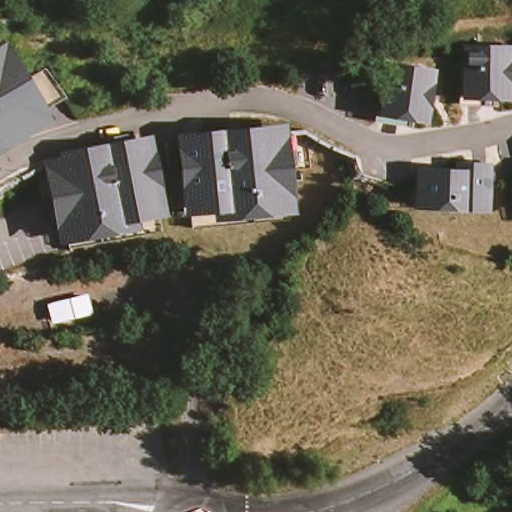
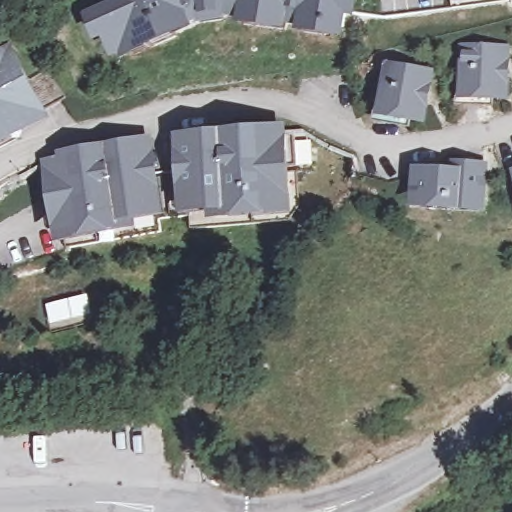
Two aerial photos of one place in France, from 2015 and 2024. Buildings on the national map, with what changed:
new [(349,17),(347,38),(300,34),(302,26),(290,26),(289,31),(240,26),(240,20),(230,18),(197,27),(125,60),(124,55),(114,58),(105,39),(97,43),(85,15),(116,0),(359,0),(357,17),(349,17)]
new [(357,17),(359,0),(512,0),(385,19),(357,17)]
unchanged [(0,149),(0,48),(10,42),(53,118),(0,149)]
unchanged [(468,46),(510,49),(507,94),(487,93),(487,100),(465,99),(468,46)]
unchanged [(423,119),(405,115),(403,121),(382,117),(392,66),(432,74),(423,119)]
unchanged [(290,124),(292,216),(212,220),(210,211),(183,214),(175,133),(290,124)]
unchanged [(57,157),(57,154),(155,136),(168,215),(136,219),(138,229),(60,244),(45,161),(57,157)]
unchanged [(413,168),(452,172),(452,165),(463,166),(464,163),(480,164),(477,206),(460,204),(460,199),(410,194),(413,168)]
unchanged [(88,299),(92,321),(53,327),(48,306),(88,299)]

